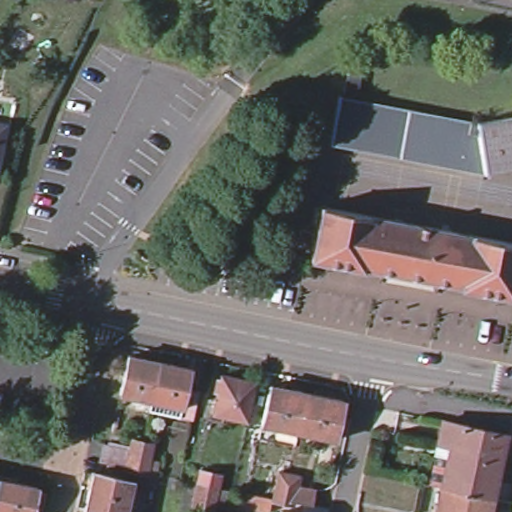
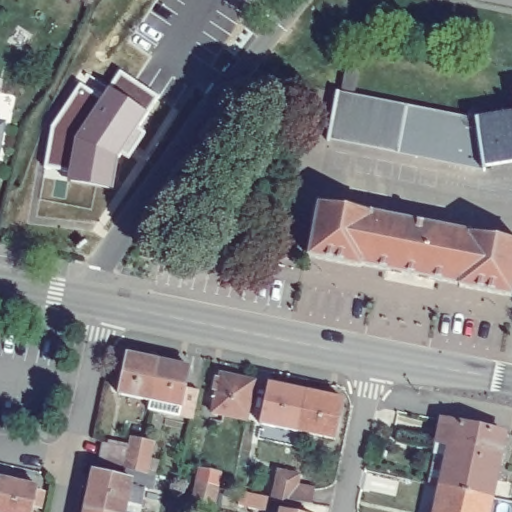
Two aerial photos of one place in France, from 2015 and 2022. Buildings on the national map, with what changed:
unchanged [(305,22),(297,32),(287,25),(295,16),(305,22)]
new [(160,94),(120,157),(113,190),(68,181),(68,172),(42,170),(50,124),(80,82),(102,96),(120,69),(160,94)]
unchanged [(322,137),(332,88),(435,108),(425,157),(322,137)]
unchanged [(471,116),(512,109),(512,157),(478,161),(477,167),(425,157),(435,108),(471,116)]
unchanged [(0,131),(0,121),(2,121),(0,131)]
unchanged [(318,203),(512,242),(512,289),(510,297),(458,287),(458,285),(360,266),(360,268),(307,257),(318,203)]
unchanged [(117,389),(125,348),(157,355),(187,362),(183,383),(198,386),(192,416),(176,413),(146,406),(148,395),(117,389)]
unchanged [(210,408),(215,386),(212,386),(215,372),(217,373),(218,368),(253,375),(245,415),(210,408)]
unchanged [(297,430),(260,423),(268,383),(305,391),(297,430)]
unchanged [(332,438),(297,430),(305,391),(340,399),(332,438)]
unchanged [(440,482),(425,479),(435,436),(439,414),(476,421),(502,426),(497,448),(487,491),(463,486),(440,482)]
unchanged [(123,512),(121,512),(83,504),(92,467),(123,474),(125,463),(123,463),(94,457),(98,438),(127,443),(129,433),(140,435),(151,437),(145,467),(154,469),(150,483),(130,479),(129,482),(142,486),(137,512),(134,512),(123,510),(123,512)]
unchanged [(199,505),(189,503),(194,478),(197,464),(218,469),(215,483),(210,507),(199,505)]
unchanged [(292,496),(292,499),(281,497),(271,494),(277,465),(287,467),(297,469),(295,481),(312,483),(310,500),(292,496)]
unchanged [(28,506),(27,512),(0,512),(0,476),(7,477),(7,481),(32,486),(32,491),(38,493),(35,507),(28,506)]
unchanged [(463,486),(487,491),(483,512),(434,512),(440,482),(463,486)]
unchanged [(240,488),(271,494),(267,509),(237,502),(240,488)]
unchanged [(121,512),(82,512),(83,504),(121,512)]
unchanged [(302,512),(277,512),(278,507),(302,512)]

